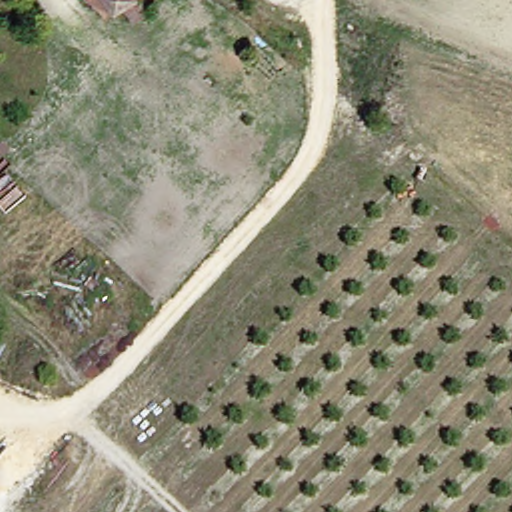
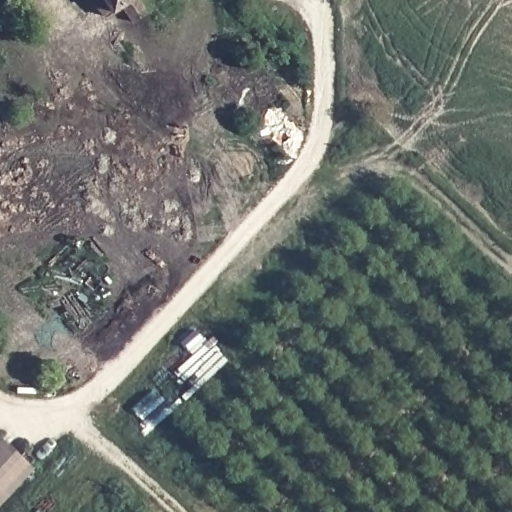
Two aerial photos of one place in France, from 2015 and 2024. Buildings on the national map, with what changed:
unchanged [(128,33),(115,14),(108,20),(90,0),(140,0),(151,14),(128,33)]
new [(36,469),(0,508),(0,438),(36,469)]

